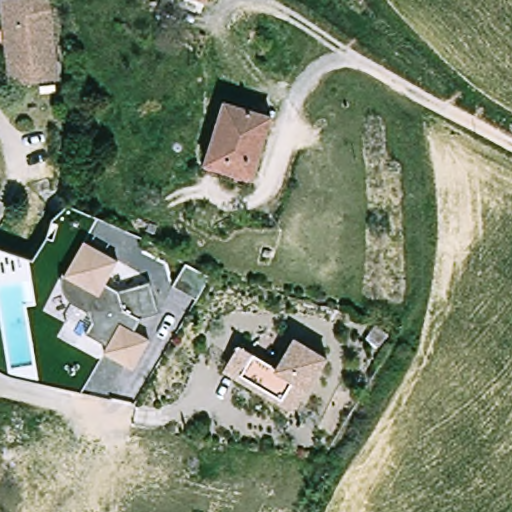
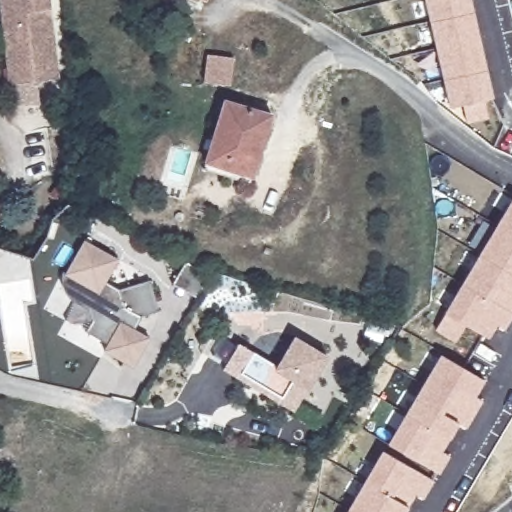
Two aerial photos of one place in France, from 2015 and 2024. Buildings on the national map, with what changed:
unchanged [(3,0),(39,0),(41,11),(59,9),(62,80),(10,85),(3,0)]
new [(485,100),(489,119),(467,124),(463,104),(450,107),(425,0),(471,0),(493,98),(485,100)]
unchanged [(207,171),(210,162),(228,100),(273,113),(256,176),(253,184),(207,171)]
new [(505,330),(497,326),(497,325),(489,339),(471,328),(465,326),(455,343),(435,331),(445,313),(512,197),(512,317),(505,330)]
unchanged [(120,263),(107,285),(121,296),(153,287),(161,319),(143,323),(135,337),(150,346),(138,365),(121,369),(102,357),(106,351),(85,337),(92,327),(88,313),(76,305),(86,288),(67,276),(87,242),(120,263)]
unchanged [(187,268),(211,282),(206,291),(197,306),(173,291),(187,268)]
unchanged [(240,382),(224,373),(240,347),(278,371),(295,341),(328,360),(298,411),(295,416),(240,382)]
new [(388,442),(442,354),(485,380),(475,397),(483,402),(467,428),(459,423),(441,453),(449,458),(441,472),(388,442)]
new [(425,500),(417,494),(410,507),(406,512),(346,512),(382,451),(412,468),(435,481),(425,500)]

